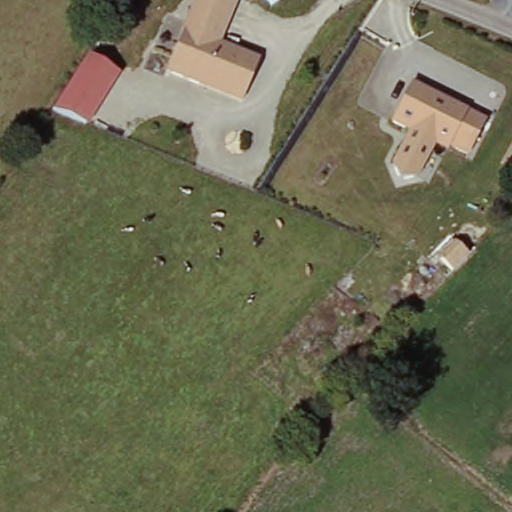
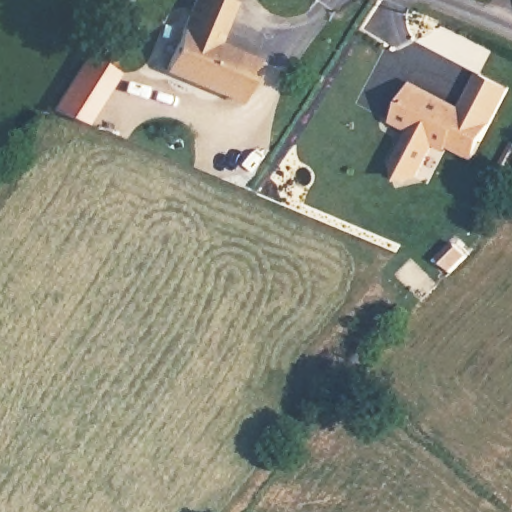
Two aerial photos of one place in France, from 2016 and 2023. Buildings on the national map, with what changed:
unchanged [(195,0),(223,0),(234,5),(217,45),(257,61),(240,104),(165,73),(195,0)]
unchanged [(54,111),(90,54),(121,73),(88,125),(54,111)]
unchanged [(486,120),(472,158),(438,147),(420,187),(390,175),(407,132),(394,125),(412,84),(486,120)]

